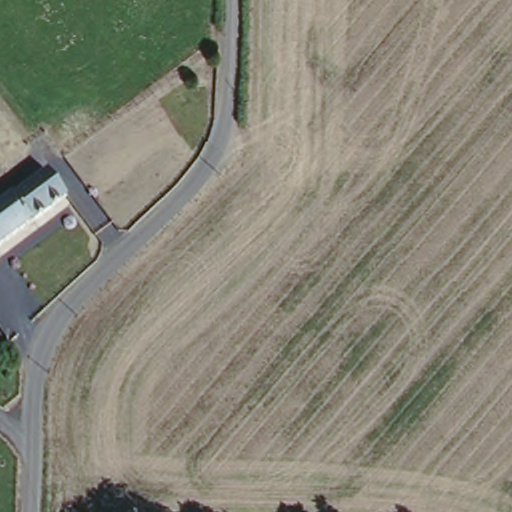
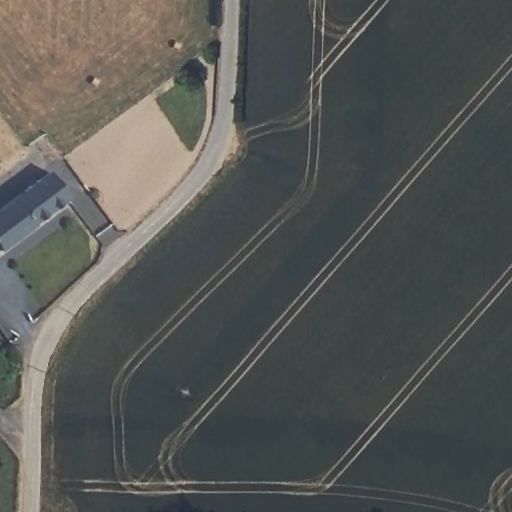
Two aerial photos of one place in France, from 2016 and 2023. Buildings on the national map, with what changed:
unchanged [(0,235),(0,201),(44,169),(61,191),(0,235)]

